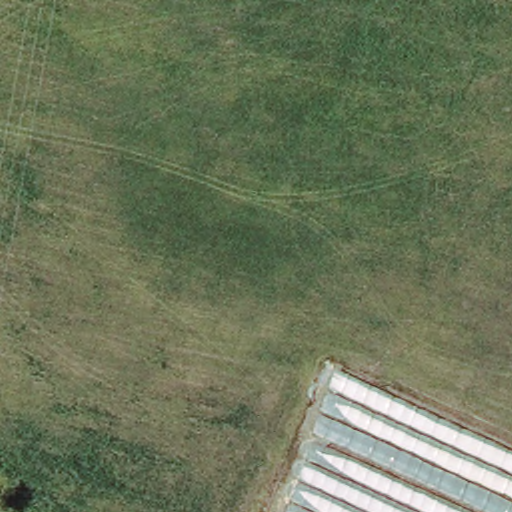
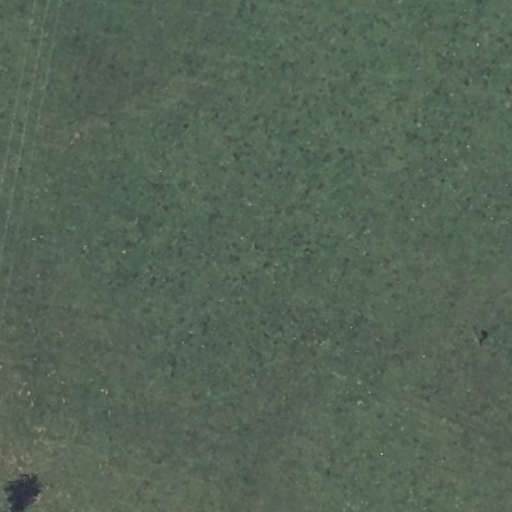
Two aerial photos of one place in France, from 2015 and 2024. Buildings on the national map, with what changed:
demolished [(512,453),(512,512),(286,512),(336,373),(512,453)]

